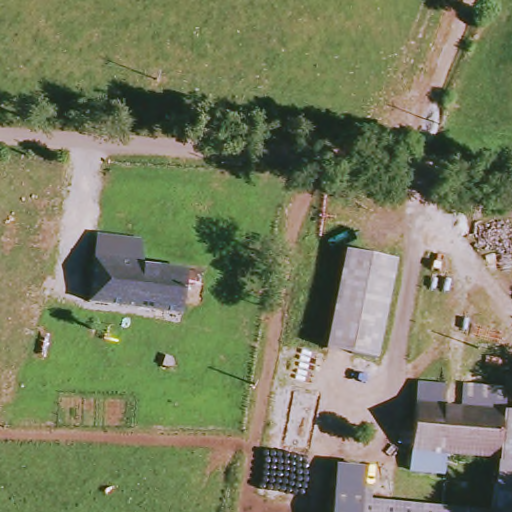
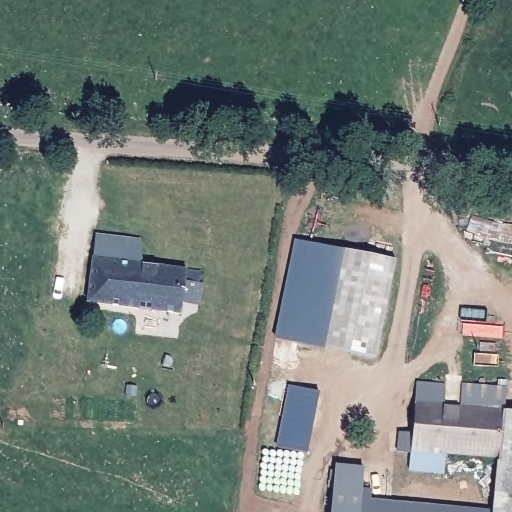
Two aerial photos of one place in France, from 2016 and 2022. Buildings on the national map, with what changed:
unchanged [(89,302),(92,237),(141,240),(140,262),(187,268),(182,311),(89,302)]
new [(276,338),(297,241),(346,248),(327,346),(276,338)]
unchanged [(327,346),(347,246),(394,256),(372,356),(327,346)]
unchanged [(409,434),(411,386),(439,387),(438,402),(457,403),(459,381),(497,382),(497,402),(497,451),(444,452),(442,472),(408,471),(409,446),(399,446),(399,435),(409,434)]
new [(291,387),(321,391),(307,453),(277,448),(291,387)]
unchanged [(358,490),(372,491),(371,497),(495,503),(497,451),(497,402),(512,402),(512,512),(334,512),(336,471),(357,472),(358,490)]

